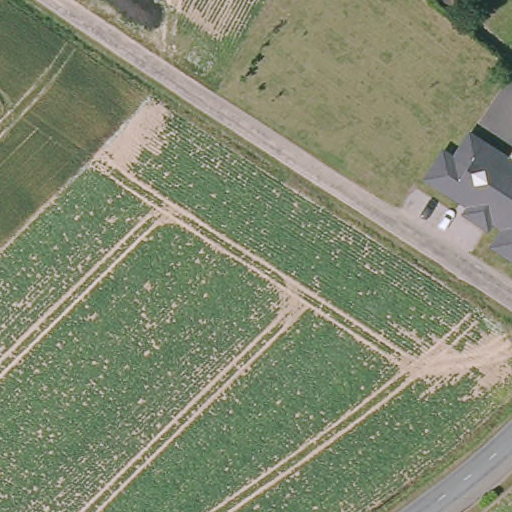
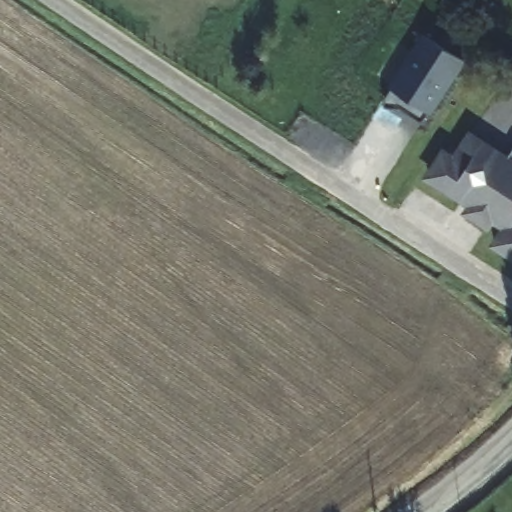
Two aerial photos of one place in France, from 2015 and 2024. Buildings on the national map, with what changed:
new [(421,123),(387,101),(393,90),(387,87),(422,32),(462,59),(459,64),(463,67),(432,115),(427,112),(421,123)]
unchanged [(498,226),(485,217),(481,224),(460,210),(467,199),(458,194),(455,197),(422,176),(437,151),(447,157),(463,132),(512,164),(512,258),(487,242),(498,226)]

